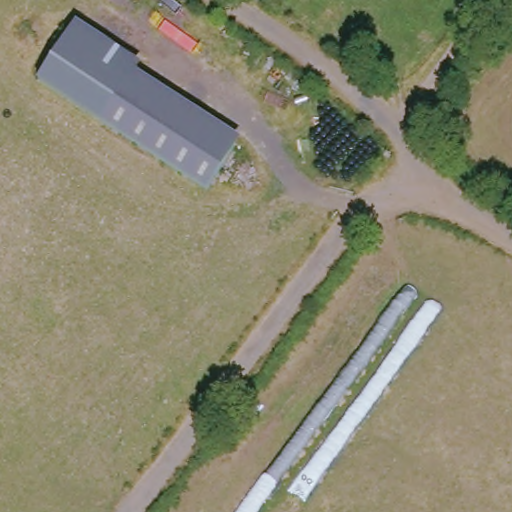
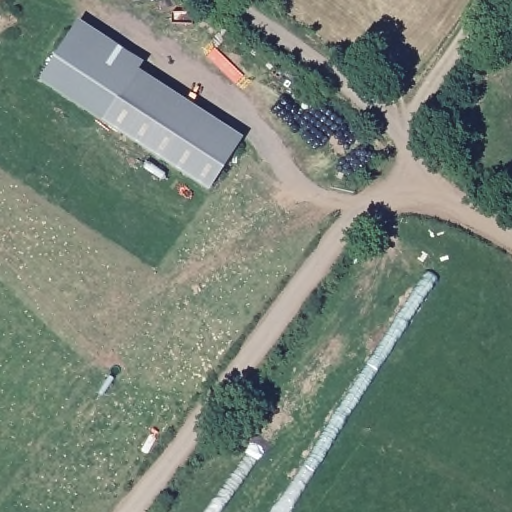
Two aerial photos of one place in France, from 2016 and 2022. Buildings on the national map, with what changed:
unchanged [(104,121),(41,83),(79,21),(144,62),(137,72),(104,121)]
unchanged [(246,139),(211,195),(104,121),(137,72),(246,139)]

